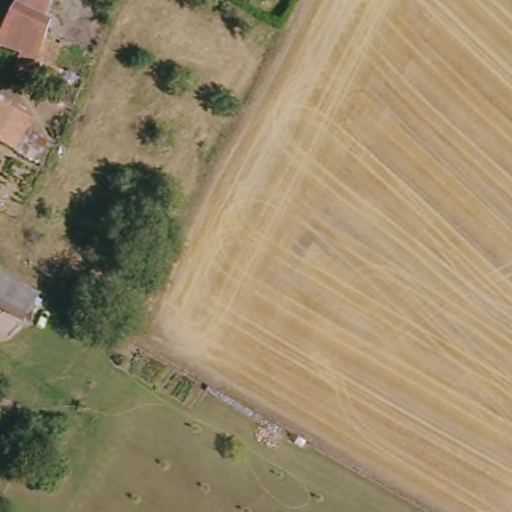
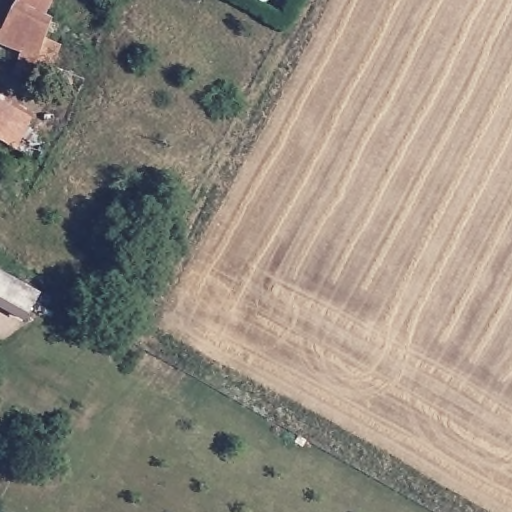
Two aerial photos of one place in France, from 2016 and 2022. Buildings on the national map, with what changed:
unchanged [(37,11),(48,17),(34,55),(81,75),(75,89),(27,69),(22,78),(7,72),(14,51),(0,45),(0,30),(8,32),(22,0),(42,0),(37,11)]
unchanged [(4,142),(0,140),(0,95),(20,104),(15,115),(45,129),(34,156),(4,142)]
unchanged [(23,320),(0,307),(0,270),(36,290),(23,320)]

